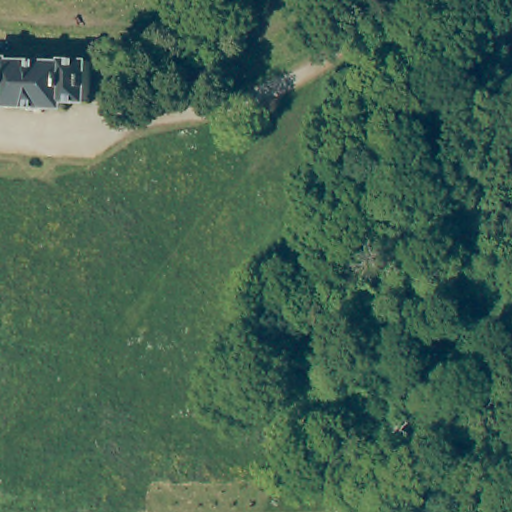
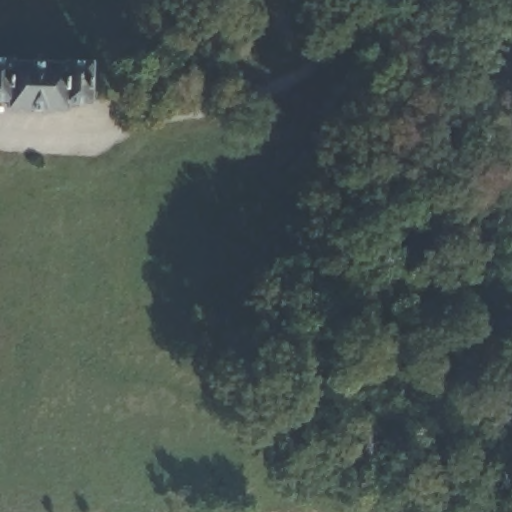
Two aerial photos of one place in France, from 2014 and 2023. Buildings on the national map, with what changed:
unchanged [(65,63),(65,59),(90,60),(90,103),(66,103),(65,110),(6,109),(6,100),(0,99),(0,58),(10,58),(10,62),(65,63)]

